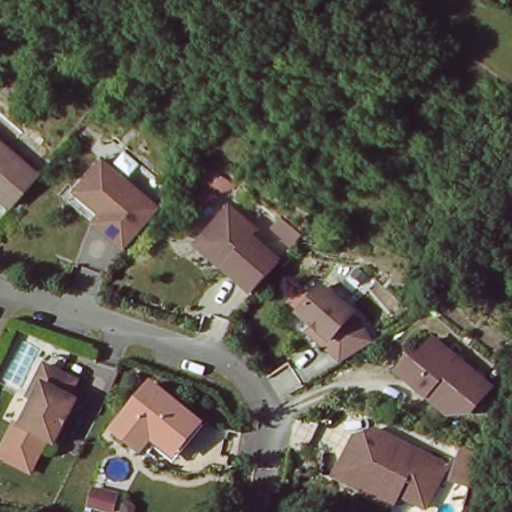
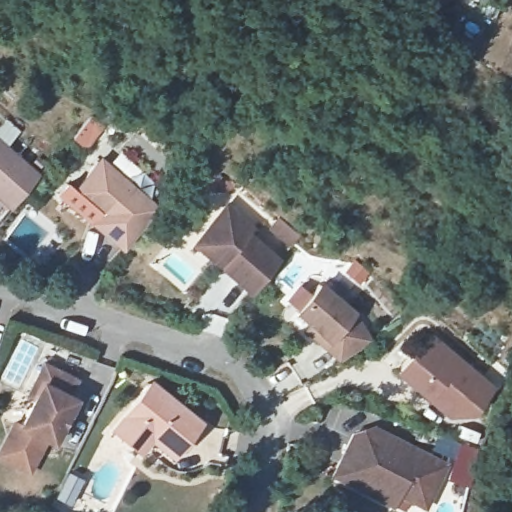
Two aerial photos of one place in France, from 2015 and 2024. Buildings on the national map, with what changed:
unchanged [(22,181),(5,201),(0,197),(0,142),(33,169),(22,181)]
unchanged [(69,187),(94,155),(153,202),(130,230),(119,243),(88,218),(61,197),(69,187)]
unchanged [(193,233),(221,201),(249,225),(245,231),(273,254),(245,287),(216,263),(188,239),(193,233)]
unchanged [(334,356),(299,327),(304,321),(289,308),(312,281),(344,308),(343,310),(349,315),(363,337),(334,356)]
unchanged [(459,402),(436,405),(414,387),(385,363),(398,347),(402,351),(419,329),(469,369),(479,377),(459,402)]
unchanged [(15,424),(29,396),(23,393),(38,361),(71,377),(63,393),(70,397),(48,440),(15,424)]
unchanged [(145,433),(134,447),(107,426),(144,379),(193,417),(174,441),(167,450),(145,433)]
unchanged [(0,460),(0,451),(15,424),(48,440),(29,476),(0,460)]
unchanged [(356,487),(328,473),(348,432),(368,425),(441,461),(419,504),(393,491),(387,502),(356,487)]

